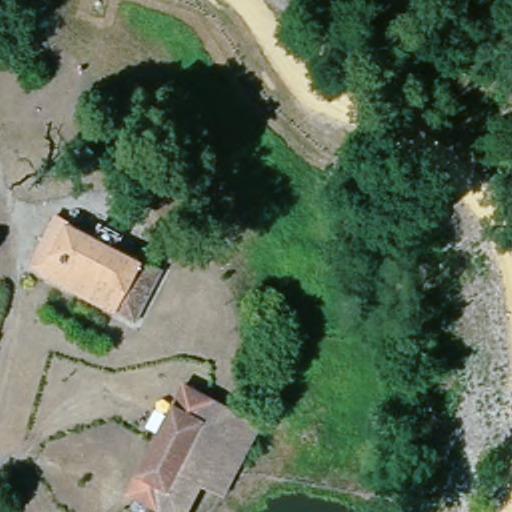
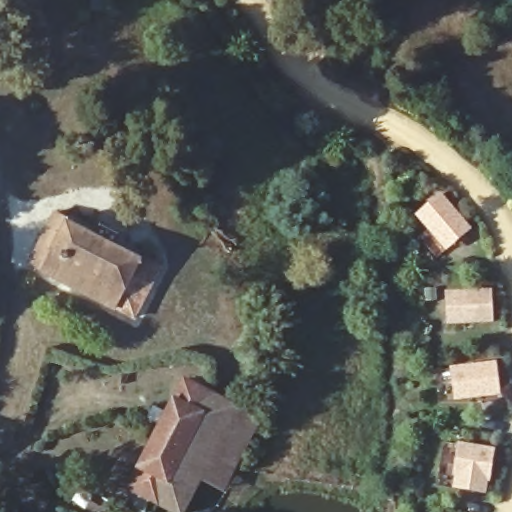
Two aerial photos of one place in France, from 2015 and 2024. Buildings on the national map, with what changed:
new [(416,215),(441,193),(473,227),(446,251),(416,215)]
unchanged [(94,234),(102,221),(121,231),(114,244),(159,267),(134,313),(42,267),(33,262),(41,249),(59,214),(63,218),(94,234)]
new [(447,325),(445,292),(492,288),(494,322),(447,325)]
new [(455,401),(454,395),(440,397),(438,370),(451,367),(497,361),(501,395),(455,401)]
unchanged [(200,481),(184,512),(169,512),(131,493),(184,382),(235,409),(200,481)]
unchanged [(244,450),(221,491),(200,481),(235,409),(258,420),(244,450)]
new [(459,443),(495,449),(491,482),(488,481),(487,494),(454,488),(455,477),(453,477),(459,443)]

